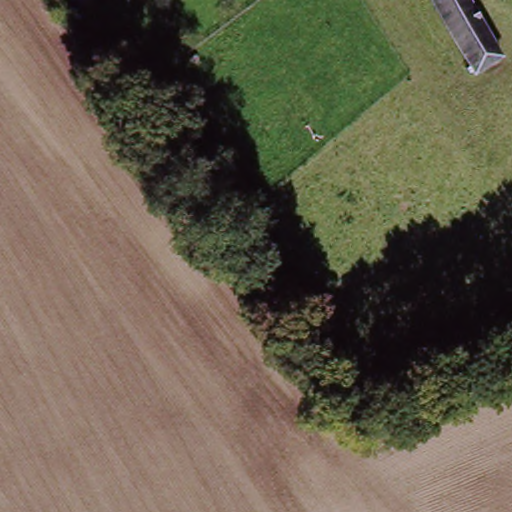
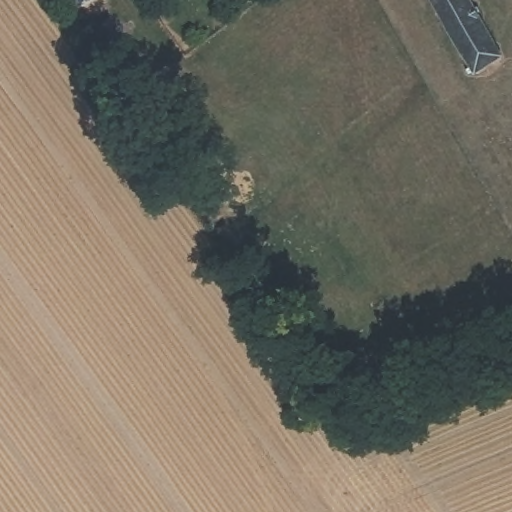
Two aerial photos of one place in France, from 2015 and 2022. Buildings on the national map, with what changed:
unchanged [(503,61),(476,77),(429,0),(466,0),(503,61)]

